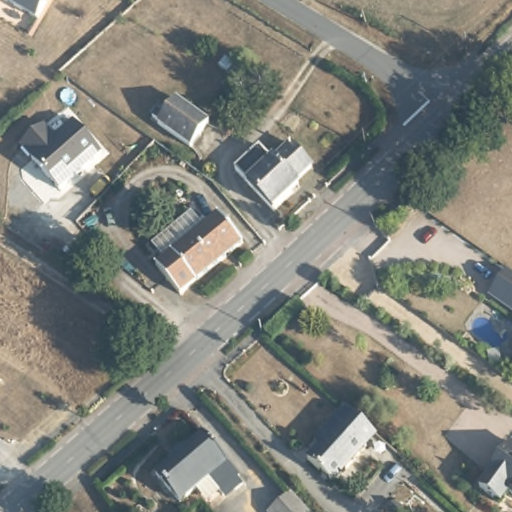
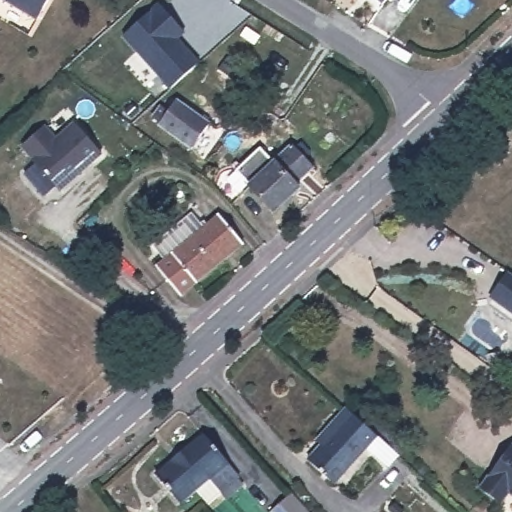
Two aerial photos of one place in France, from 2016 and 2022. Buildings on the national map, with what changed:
unchanged [(4,0),(46,0),(35,18),(4,0)]
unchanged [(383,5),(378,0),(388,0),(383,5)]
new [(157,4),(184,32),(177,39),(190,53),(187,56),(196,65),(173,85),(146,56),(143,59),(135,50),(138,48),(123,32),(157,4)]
unchanged [(233,65),(226,74),(217,67),(224,57),(233,65)]
unchanged [(190,149),(157,123),(150,118),(169,94),(175,99),(209,124),(190,149)]
unchanged [(33,160),(34,159),(23,145),(37,134),(47,125),(59,138),(78,122),(104,154),(76,178),(60,191),(33,160)]
unchanged [(291,180),(296,186),(271,210),(230,170),(254,147),(269,161),(285,144),(308,166),(291,180)]
unchanged [(166,263),(153,249),(193,216),(205,231),(177,255),(166,263)]
unchanged [(158,271),(166,263),(177,255),(205,231),(220,219),(244,247),(182,298),(158,271)]
unchanged [(512,276),(512,310),(496,298),(512,276)]
unchanged [(365,445),(367,446),(334,483),(307,459),(326,438),(322,433),(346,407),(375,433),(365,445)]
unchanged [(238,471),(236,472),(241,478),(234,485),(232,482),(221,491),(207,473),(178,498),(155,470),(202,430),(238,471)]
unchanged [(512,492),(504,487),(495,498),(475,482),(509,438),(512,441),(512,492)]
unchanged [(304,512),(269,512),(291,496),(304,512)]

